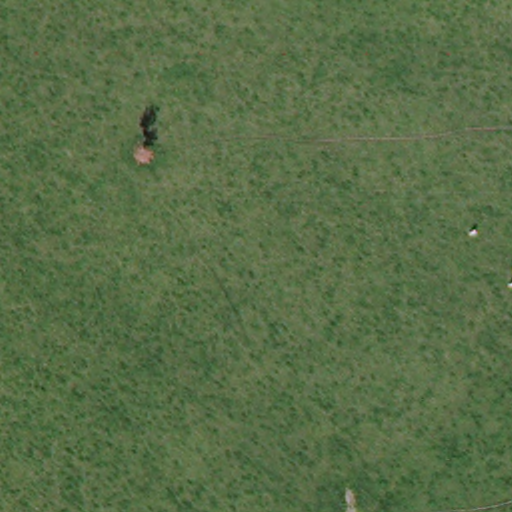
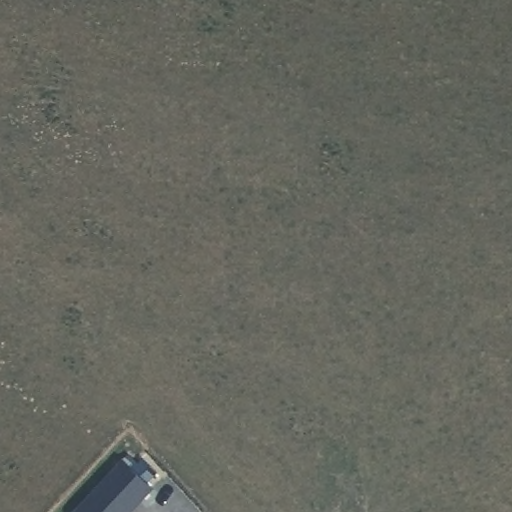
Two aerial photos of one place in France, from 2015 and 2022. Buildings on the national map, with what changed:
new [(152,489),(130,512),(76,512),(122,462),(152,489)]

